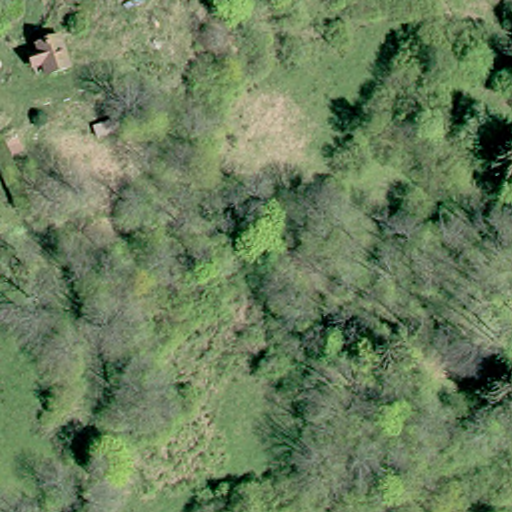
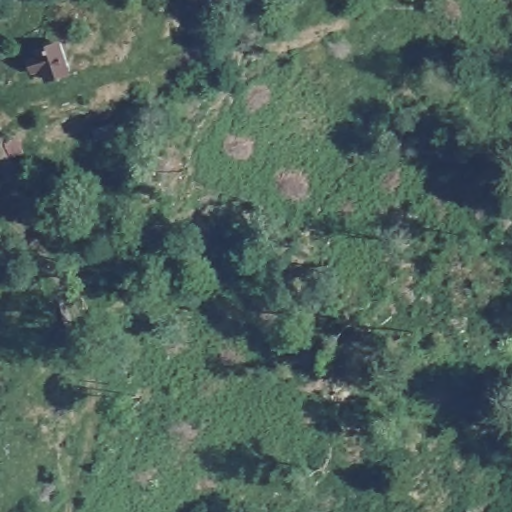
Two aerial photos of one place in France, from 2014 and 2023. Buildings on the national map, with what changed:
unchanged [(27,59),(37,56),(35,49),(41,47),(40,41),(47,39),(48,45),(55,42),(65,71),(45,78),(40,66),(30,70),(27,59)]
unchanged [(110,121),(113,131),(95,138),(91,128),(110,121)]

